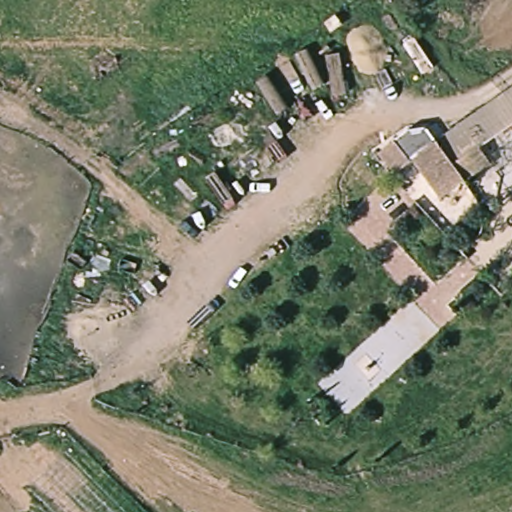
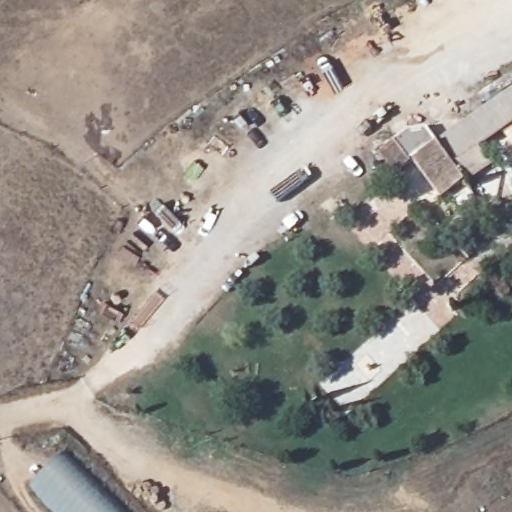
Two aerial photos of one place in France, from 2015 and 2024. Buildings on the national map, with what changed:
unchanged [(487,148),(464,165),(447,144),(442,137),(512,90),(512,130),(487,148)]
unchanged [(420,163),(412,170),(396,149),(404,143),(420,163)]
unchanged [(464,165),(487,148),(499,164),(450,200),(421,161),(447,144),(464,165)]
unchanged [(453,252),(424,215),(434,205),(465,241),(453,252)]
new [(123,512),(53,512),(28,488),(65,455),(123,512)]

